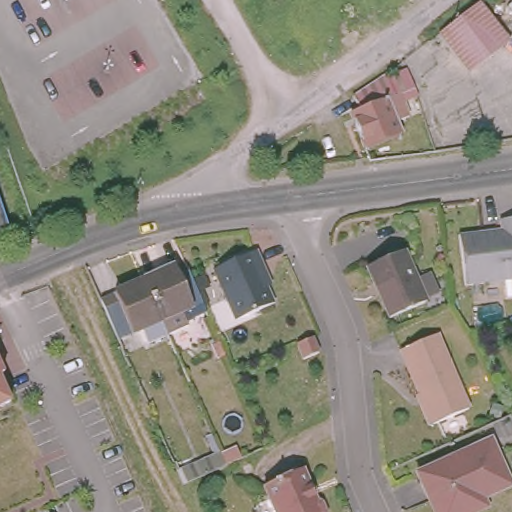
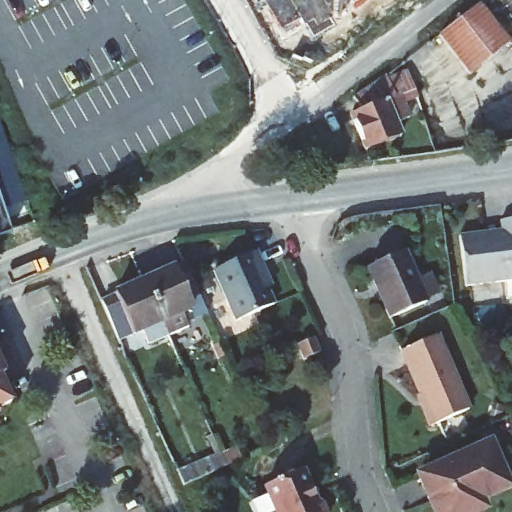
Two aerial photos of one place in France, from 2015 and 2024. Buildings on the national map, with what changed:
new [(343,5),(346,11),(329,20),(334,29),(311,43),(302,27),(283,36),(280,31),(262,1),(255,5),(252,0),(353,0),(343,5)]
unchanged [(480,4),(506,46),(467,74),(440,35),(480,4)]
unchanged [(382,79),(402,72),(411,94),(390,102),(395,115),(391,117),(399,144),(361,158),(347,120),(357,116),(354,100),(382,77),(382,79)]
unchanged [(0,236),(0,216),(6,234),(0,236)]
unchanged [(512,216),(512,294),(510,294),(505,290),(504,277),(467,282),(462,232),(504,226),(502,217),(512,216)]
unchanged [(242,320),(220,270),(262,252),(269,268),(265,270),(279,305),(242,320)]
unchanged [(437,300),(427,304),(391,320),(368,270),(405,253),(420,285),(429,281),(437,300)]
unchanged [(170,264),(170,266),(182,261),(198,297),(179,306),(187,321),(164,331),(140,279),(170,264)]
unchanged [(164,331),(142,341),(136,327),(115,337),(97,299),(140,279),(164,331)]
unchanged [(444,332),(477,405),(438,423),(429,402),(432,401),(407,348),(444,332)]
unchanged [(306,362),(299,347),(314,341),(320,355),(306,362)]
unchanged [(0,410),(0,397),(5,408),(0,410)]
unchanged [(490,501),(469,512),(440,512),(424,478),(466,458),(464,453),(494,438),(512,476),(512,484),(487,496),(490,501)]
unchanged [(227,465),(185,483),(177,467),(219,446),(227,465)]
unchanged [(307,465),(322,498),(327,500),(332,511),(332,512),(283,512),(270,482),(307,465)]

